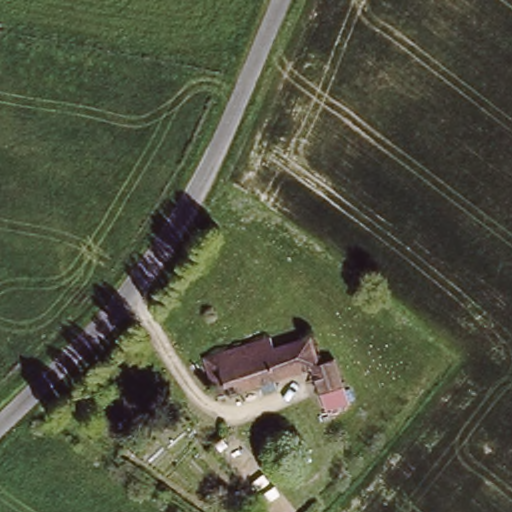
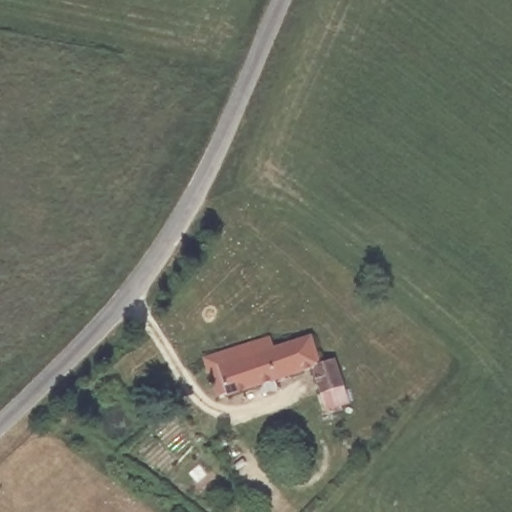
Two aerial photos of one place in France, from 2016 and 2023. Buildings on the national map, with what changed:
unchanged [(224,392),(218,394),(204,357),(245,342),(250,355),(307,332),(318,362),(333,356),(351,403),(327,413),(309,365),(226,397),(224,392)]

